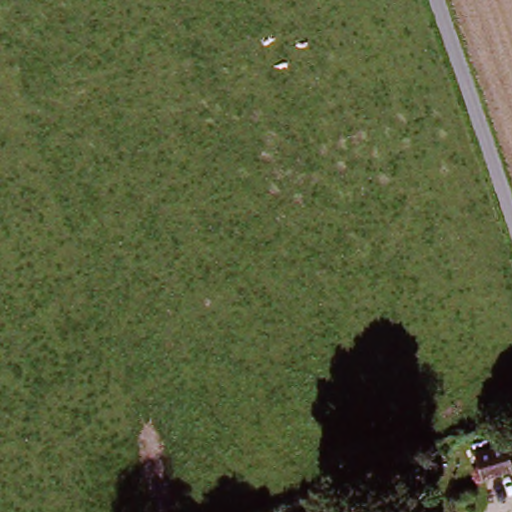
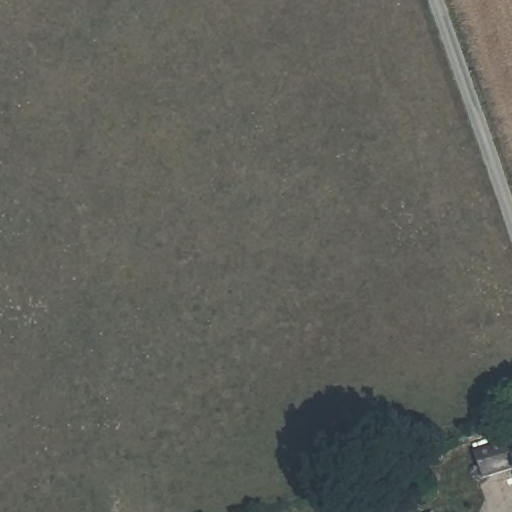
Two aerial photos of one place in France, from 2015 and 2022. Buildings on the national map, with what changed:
unchanged [(480,481),(471,456),(503,445),(511,470),(480,481)]

